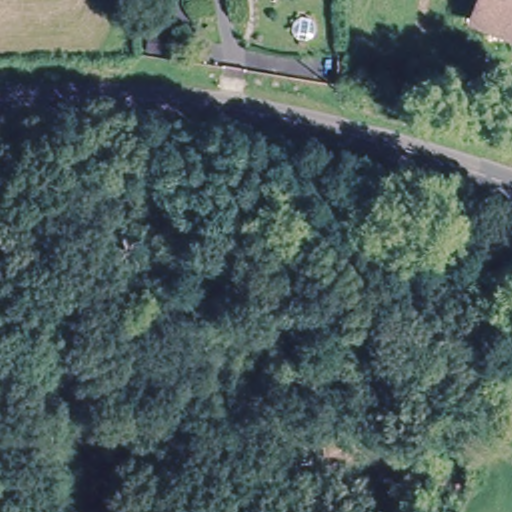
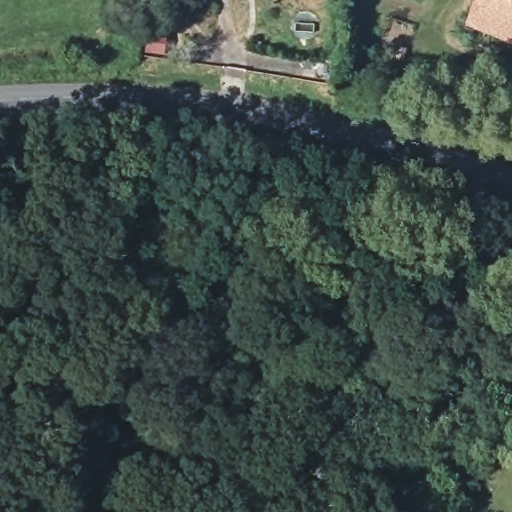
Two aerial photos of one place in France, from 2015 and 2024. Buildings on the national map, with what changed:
unchanged [(477,0),(512,0),(512,37),(470,19),(477,0)]

